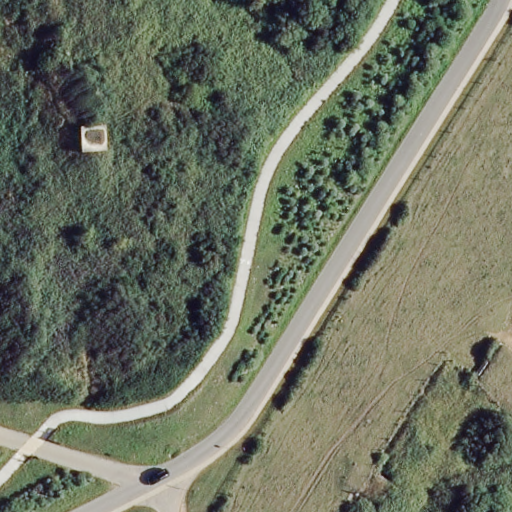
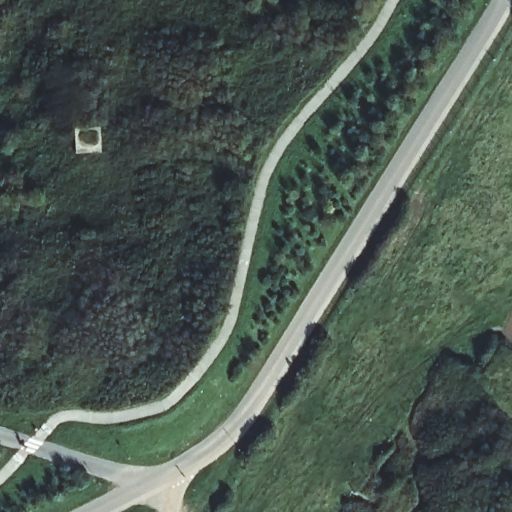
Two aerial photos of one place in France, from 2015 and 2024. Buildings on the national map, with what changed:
unchanged [(99,123),(102,151),(73,154),(70,127),(99,123)]
unchanged [(467,385),(480,366),(497,341),(512,351),(512,413),(512,414),(467,385)]

